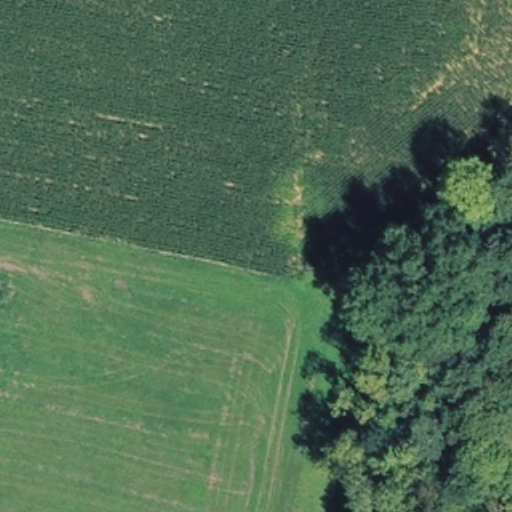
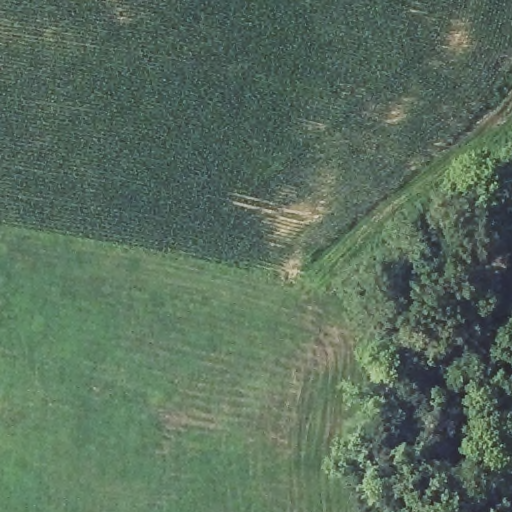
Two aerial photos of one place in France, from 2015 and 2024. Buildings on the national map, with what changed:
[]

